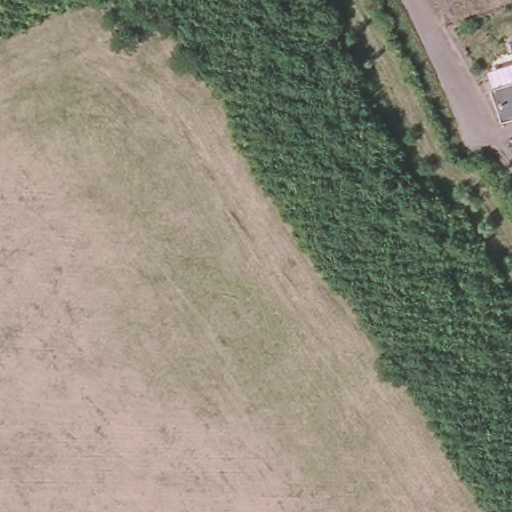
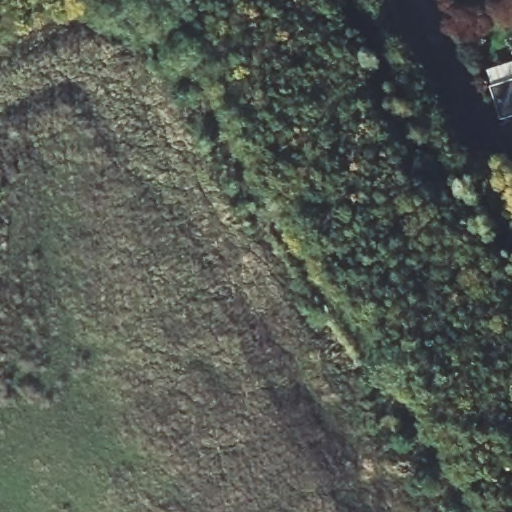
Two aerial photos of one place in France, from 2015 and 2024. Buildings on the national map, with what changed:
unchanged [(512,117),(499,121),(491,94),(512,88),(512,117)]

